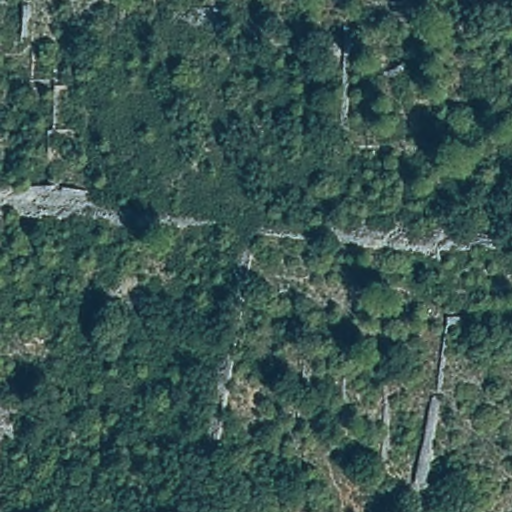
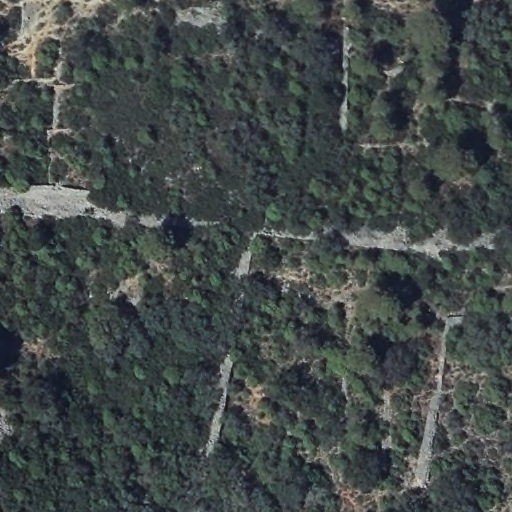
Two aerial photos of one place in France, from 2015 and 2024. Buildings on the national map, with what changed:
[]

